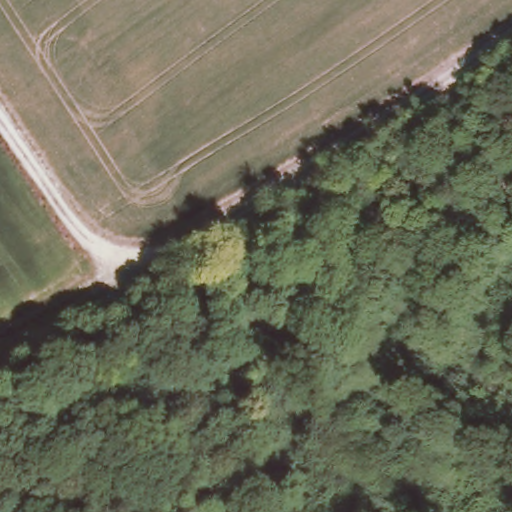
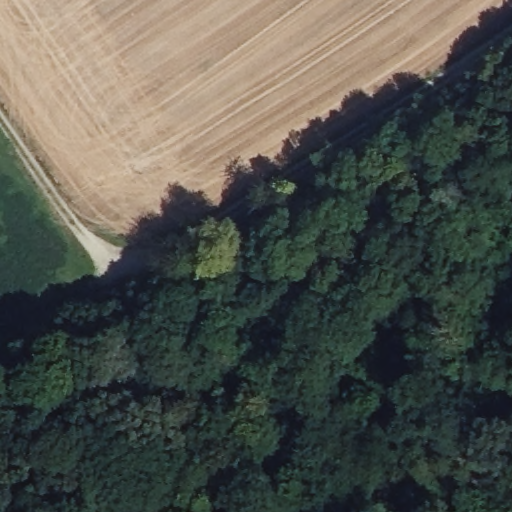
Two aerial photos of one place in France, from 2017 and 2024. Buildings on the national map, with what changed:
[]

